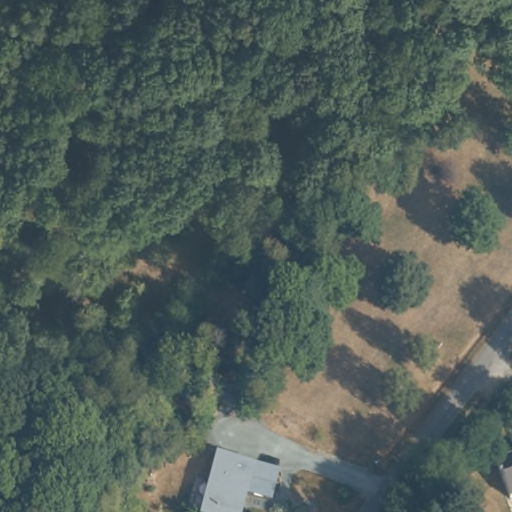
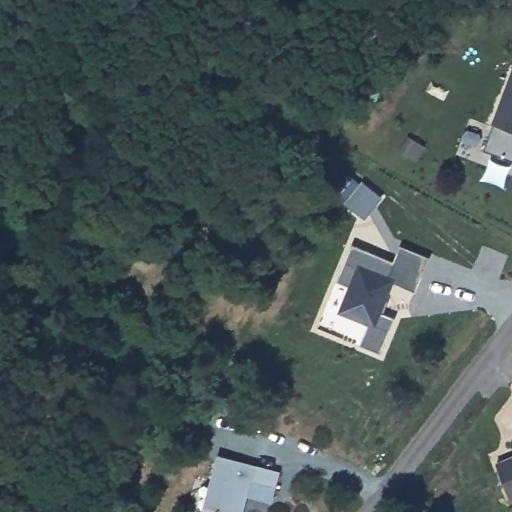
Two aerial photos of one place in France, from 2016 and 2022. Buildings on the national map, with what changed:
new [(512,162),(482,151),(512,70),(512,162)]
new [(369,325),(339,312),(348,287),(337,281),(353,245),(393,262),(400,245),(429,256),(414,291),(394,283),(382,312),(395,317),(380,353),(361,345),(369,325)]
unchanged [(216,476),(220,456),(280,470),(274,498),(243,492),(238,512),(213,512),(222,477),(216,476)]
unchanged [(512,456),(512,499),(509,501),(496,463),(512,456)]

